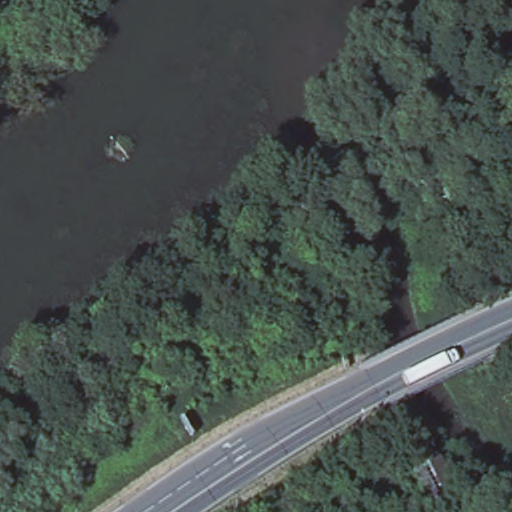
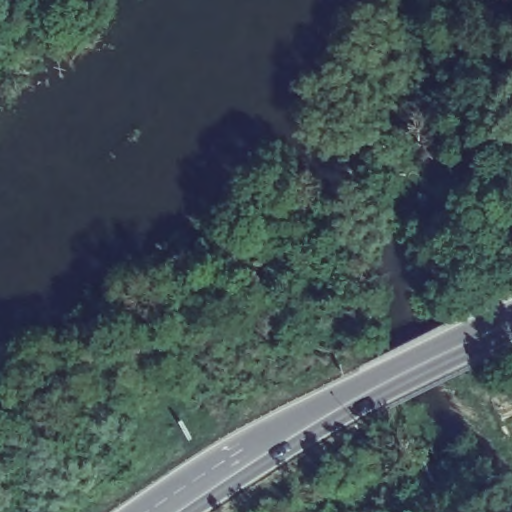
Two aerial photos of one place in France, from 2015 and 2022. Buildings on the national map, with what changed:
unchanged [(404,457),(440,440),(475,512),(430,512),(404,457)]

